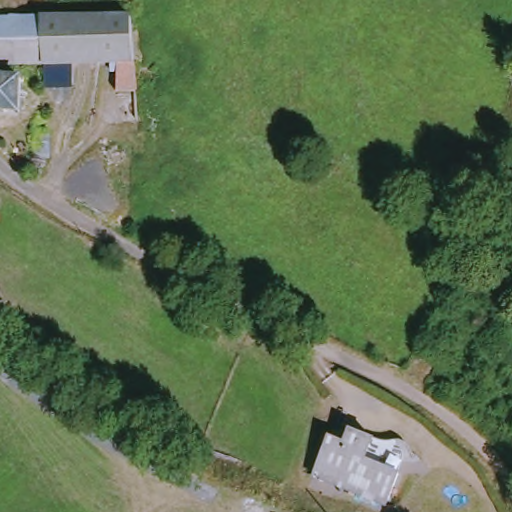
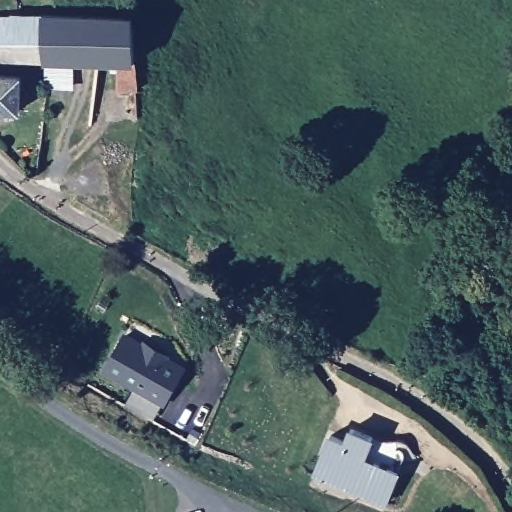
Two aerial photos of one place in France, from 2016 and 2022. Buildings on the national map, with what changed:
unchanged [(0,66),(0,18),(34,18),(137,19),(140,94),(122,93),(121,65),(80,65),(77,81),(51,81),(52,71),(52,66),(0,66)]
unchanged [(0,111),(0,78),(27,79),(25,112),(0,111)]
new [(125,333),(143,342),(145,340),(171,356),(170,359),(186,368),(165,407),(161,406),(153,421),(126,406),(135,391),(102,374),(125,333)]
unchanged [(320,467),(335,427),(351,433),(356,421),(379,429),(405,439),(410,445),(410,448),(404,463),(391,496),(320,467)]

